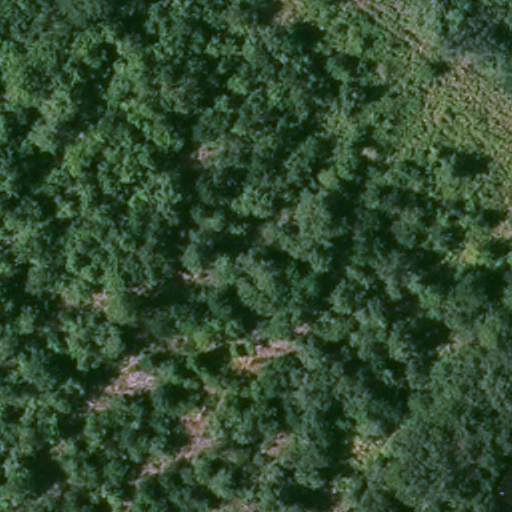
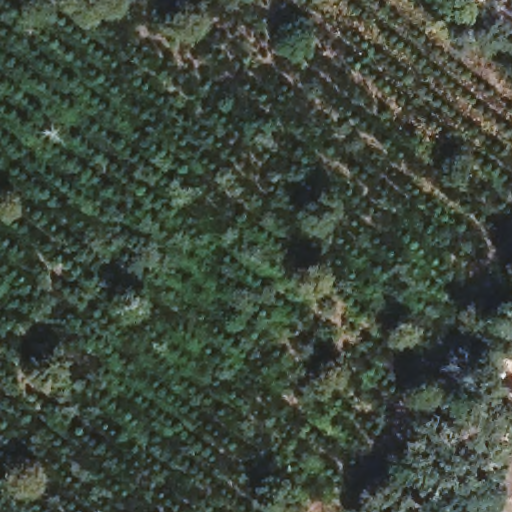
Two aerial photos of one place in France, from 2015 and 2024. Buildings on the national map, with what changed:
unchanged [(512,462),(512,496),(496,490),(512,462)]

